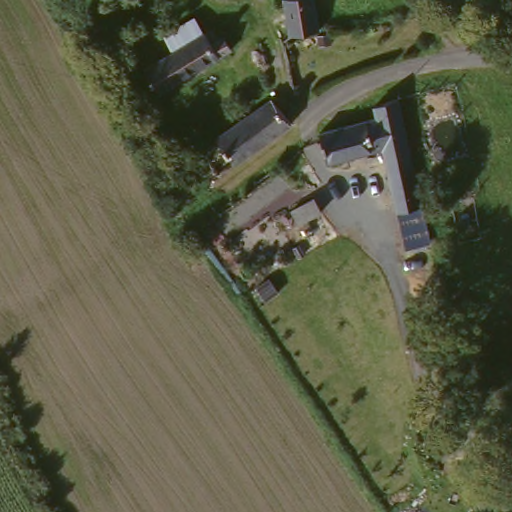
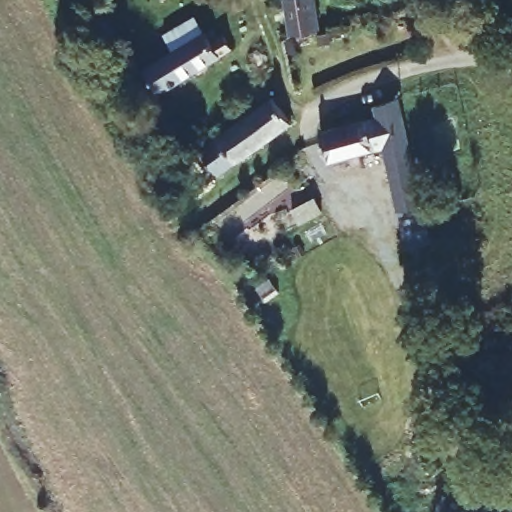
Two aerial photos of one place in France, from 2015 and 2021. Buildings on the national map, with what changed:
unchanged [(304,45),(286,45),(285,7),(285,0),(311,0),(311,10),(331,10),(331,32),(311,33),(313,44),(304,45)]
unchanged [(139,80),(155,70),(172,60),(161,42),(186,27),(208,56),(221,49),(228,59),(154,105),(139,80)]
unchanged [(388,212),(373,119),(372,109),(398,100),(413,210),(388,212)]
unchanged [(212,139),(221,135),(274,107),(291,135),(226,168),(212,139)]
unchanged [(326,140),(362,124),(371,147),(334,165),(326,147),(326,140)]

